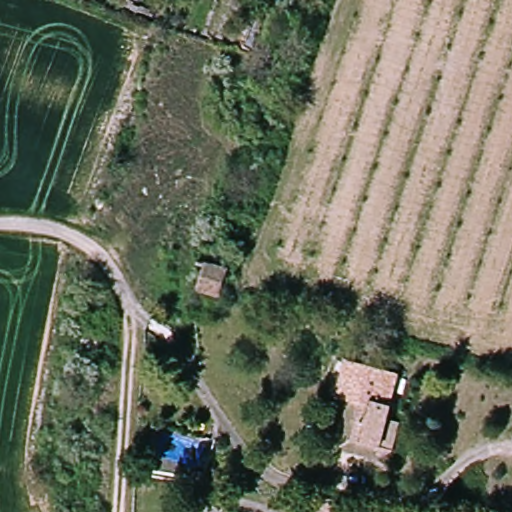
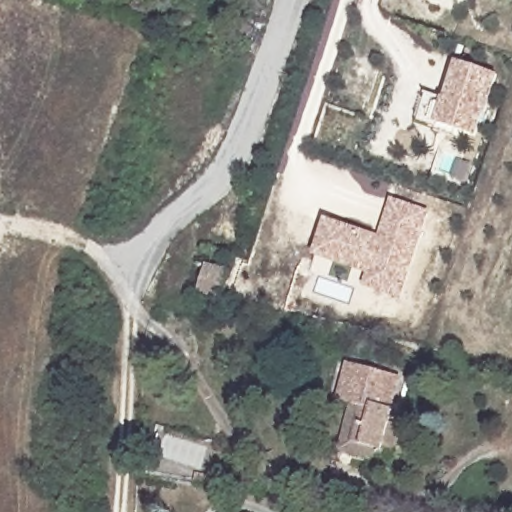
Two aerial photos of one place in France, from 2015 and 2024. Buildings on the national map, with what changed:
unchanged [(116,0),(121,0),(120,2),(116,0)]
new [(477,138),(460,133),(458,139),(417,125),(425,94),(445,98),(457,62),(498,75),(477,138)]
new [(380,236),(392,198),(430,211),(402,299),(363,286),(367,274),(313,257),(327,219),(380,236)]
unchanged [(228,276),(218,303),(194,297),(199,281),(202,272),(228,276)]
unchanged [(365,413),(342,408),(350,372),(392,382),(385,415),(389,416),(382,453),(358,448),(365,413)]
unchanged [(357,512),(320,512),(322,499),(348,502),(359,504),(357,512)]

